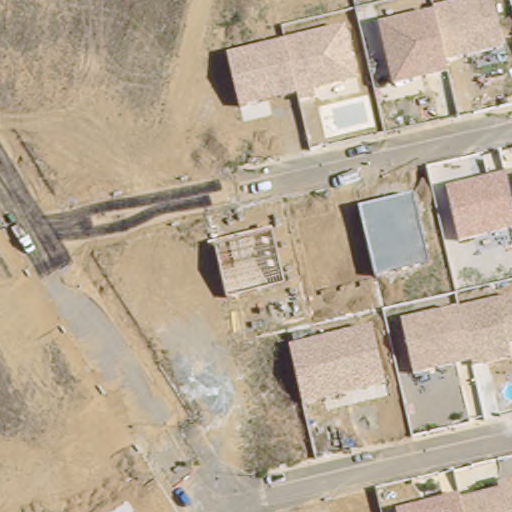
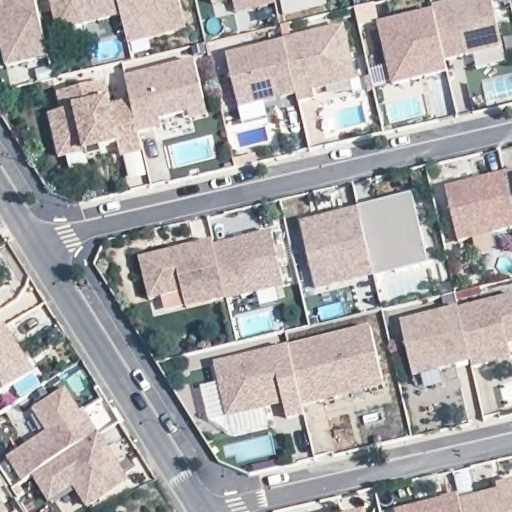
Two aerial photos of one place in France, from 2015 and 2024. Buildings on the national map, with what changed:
unchanged [(49,58),(7,68),(0,40),(0,0),(36,0),(49,58)]
new [(128,44),(121,14),(58,28),(52,0),(180,0),(182,9),(187,30),(178,32),(128,44)]
new [(212,4),(212,0),(230,0),(212,4)]
unchanged [(379,24),(432,12),(432,8),(467,0),(494,0),(505,47),(446,61),(448,74),(393,85),(379,24)]
unchanged [(227,55),(285,42),(347,29),(358,81),(315,92),(317,100),(298,104),(297,95),(240,107),(227,55)]
unchanged [(155,130),(139,134),(132,102),(126,78),(195,62),(205,100),(208,118),(192,121),(190,113),(160,120),(162,129),(155,130)]
new [(58,145),(51,114),(64,111),(60,94),(105,83),(111,106),(132,102),(139,134),(143,151),(122,156),(119,144),(100,148),(102,154),(88,157),(87,151),(61,157),(58,145)]
unchanged [(447,187),(512,172),(512,230),(458,241),(447,187)]
unchanged [(360,208),(413,196),(430,265),(377,277),(360,208)]
new [(318,290),(303,224),(361,211),(377,277),(318,290)]
unchanged [(215,245),(274,232),(286,285),(227,300),(215,245)]
new [(187,310),(184,295),(150,302),(140,259),(215,245),(227,300),(187,310)]
unchanged [(402,321),(460,308),(512,297),(512,345),(508,345),(512,360),(472,368),(471,363),(415,375),(402,321)]
new [(15,386),(0,396),(0,331),(5,327),(11,336),(23,356),(35,374),(15,386)]
unchanged [(290,347),(374,328),(387,387),(303,406),(290,347)]
new [(305,418),(287,423),(284,406),(266,410),(270,430),(232,438),(210,421),(202,388),(219,385),(215,362),(290,347),(303,406),(305,418)]
new [(34,475),(22,482),(7,458),(48,433),(34,411),(67,390),(80,413),(85,410),(99,434),(34,475)]
new [(99,434),(128,480),(85,508),(71,486),(50,500),(34,475),(99,434)]
unchanged [(462,502),(500,492),(497,485),(512,482),(512,512),(395,512),(461,496),(462,502)]
unchanged [(6,512),(0,512),(0,502),(6,512)]

